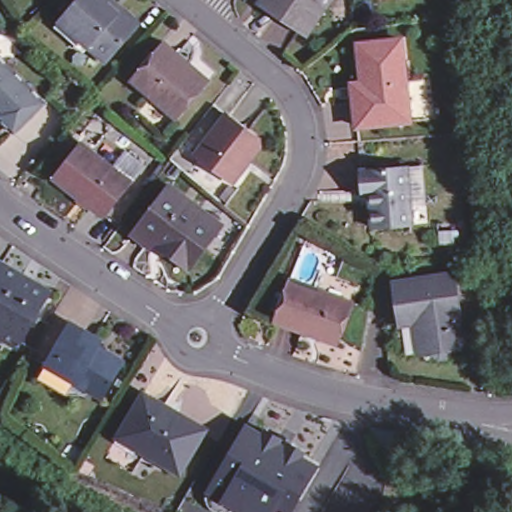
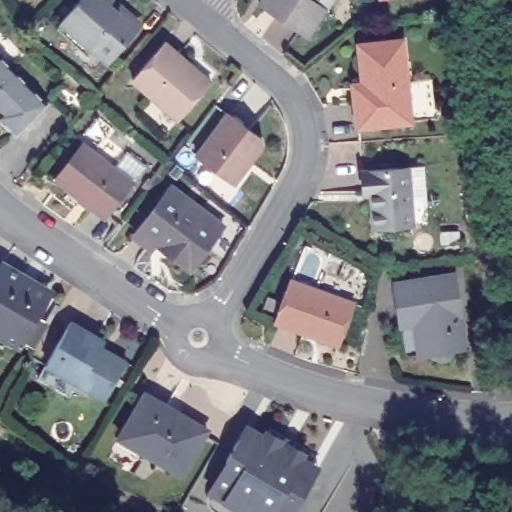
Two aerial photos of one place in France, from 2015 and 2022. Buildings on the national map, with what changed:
unchanged [(70,7),(76,0),(112,0),(122,8),(132,16),(135,21),(134,26),(104,61),(62,25),(58,22),(70,7)]
unchanged [(316,0),(325,5),(308,35),(256,4),(258,0),(316,0)]
unchanged [(352,84),(361,82),(358,44),(399,39),(407,121),(355,126),(352,84)]
unchanged [(161,40),(206,79),(175,116),(129,77),(161,40)]
unchanged [(45,103),(15,132),(0,116),(0,112),(2,110),(0,109),(0,56),(45,103)]
unchanged [(226,110),(258,131),(260,134),(260,137),(260,141),(258,146),(232,178),(195,150),(226,110)]
unchanged [(80,143),(129,182),(102,216),(54,177),(80,143)]
unchanged [(360,173),(406,166),(413,224),(374,229),(369,196),(362,195),(360,173)]
unchanged [(203,210),(223,222),(218,230),(193,269),(167,252),(170,247),(158,240),(152,248),(134,236),(167,185),(203,210)]
unchanged [(2,258),(23,270),(22,273),(47,286),(20,338),(0,328),(0,261),(2,258)]
unchanged [(394,281),(455,273),(466,346),(453,347),(450,355),(448,357),(444,359),(439,359),(429,351),(419,353),(406,355),(401,323),(394,281)]
unchanged [(302,330),(273,320),(288,279),(351,305),(339,338),(337,344),(302,330)]
unchanged [(46,358),(72,315),(100,332),(97,339),(125,356),(104,392),(75,375),(67,388),(37,372),(46,358)]
unchanged [(182,413),(205,426),(180,470),(157,456),(119,433),(144,390),(182,413)]
unchanged [(278,425),(281,420),(292,427),(289,431),(303,438),(299,444),(309,450),(316,454),(311,462),(309,466),(296,489),(291,486),(276,512),(246,512),(219,501),(213,497),(208,492),(206,487),(206,482),(208,476),(212,478),(229,450),(225,447),(238,425),(245,412),(252,417),(262,422),(265,416),(278,425)]

